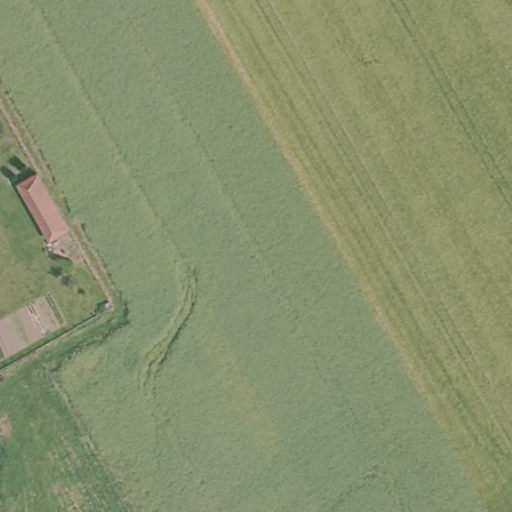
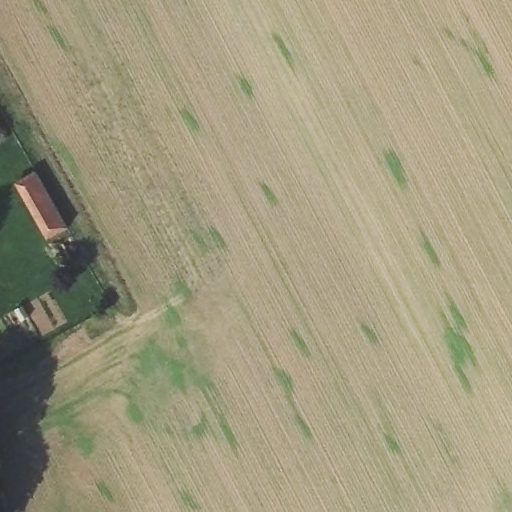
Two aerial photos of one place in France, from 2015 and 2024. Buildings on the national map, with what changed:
unchanged [(45,240),(12,185),(38,170),(68,226),(45,240)]

